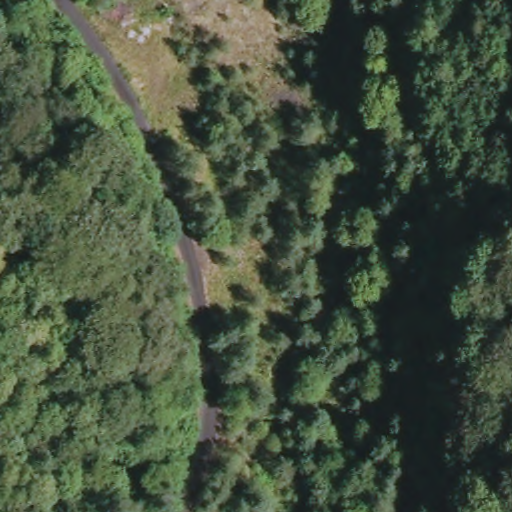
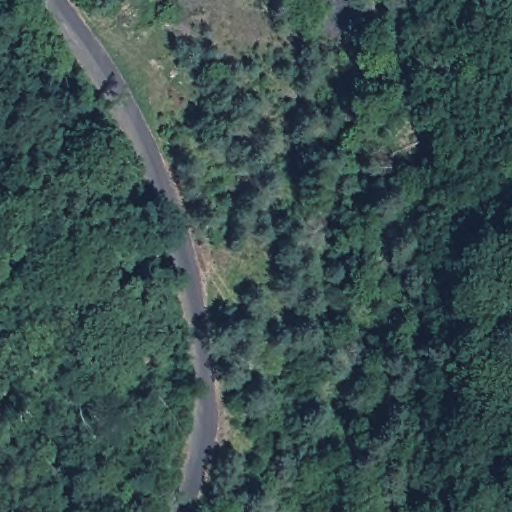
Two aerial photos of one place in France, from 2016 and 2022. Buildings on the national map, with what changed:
unchanged [(269,426),(263,407),(280,402),(285,421),(269,426)]

